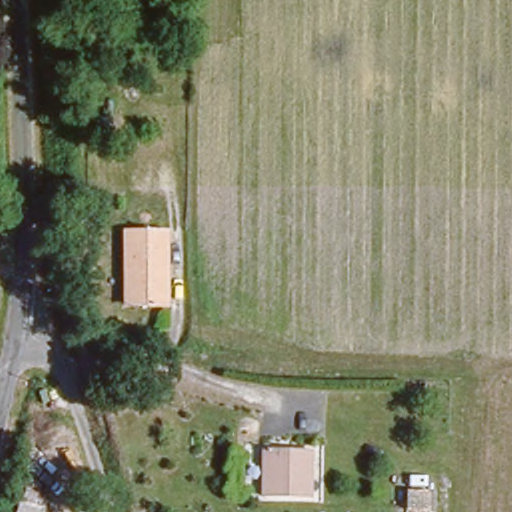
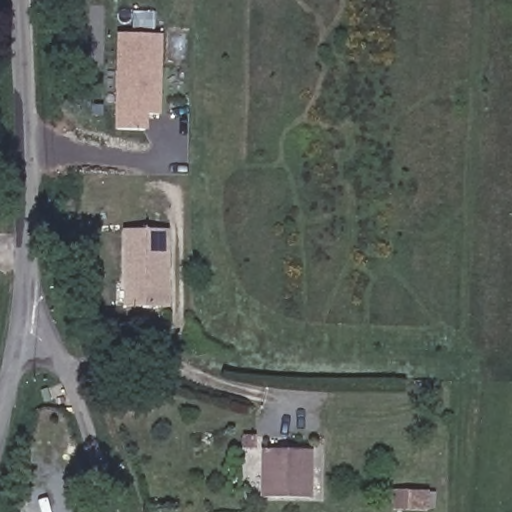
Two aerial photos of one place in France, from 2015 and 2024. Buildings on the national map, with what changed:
new [(159,115),(148,115),(148,130),(113,130),(115,34),(161,35),(159,115)]
unchanged [(160,227),(160,303),(119,302),(118,285),(114,283),(114,225),(160,227)]
unchanged [(304,490),(260,491),(260,443),(304,442),(304,490)]
unchanged [(409,492),(429,491),(429,512),(409,512),(409,492)]

